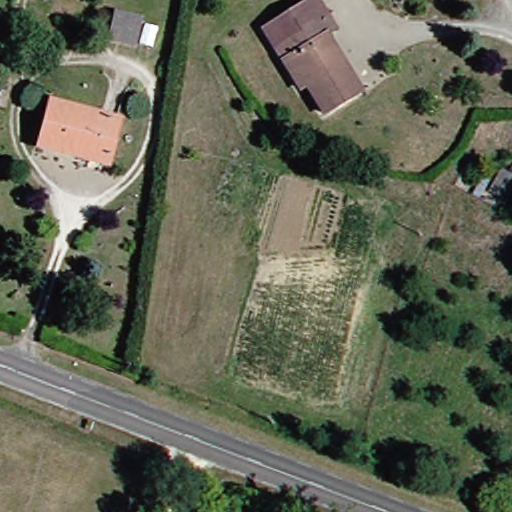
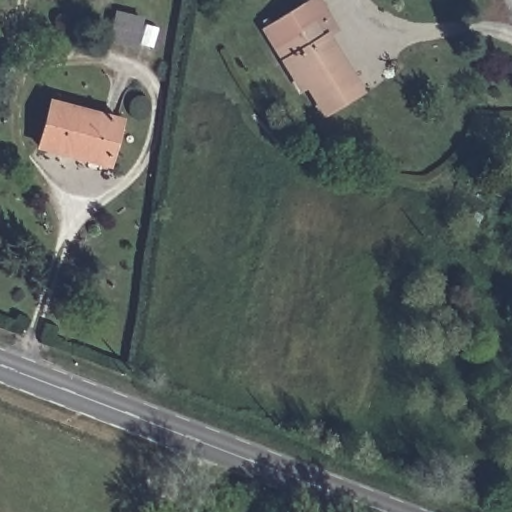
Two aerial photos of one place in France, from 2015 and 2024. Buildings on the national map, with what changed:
unchanged [(269,27),(316,0),(317,0),(332,21),(333,24),(338,30),(334,33),(351,62),(368,90),(332,110),(316,88),(314,85),(309,88),(269,27)]
unchanged [(116,6),(140,14),(132,41),(108,34),(116,6)]
unchanged [(92,157),(48,147),(59,101),(127,117),(120,154),(118,163),(92,157)]

